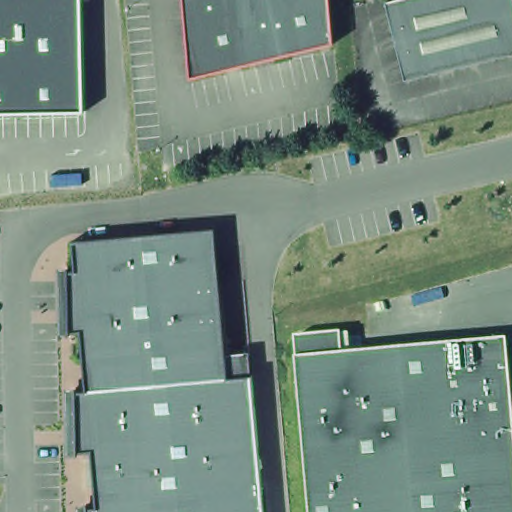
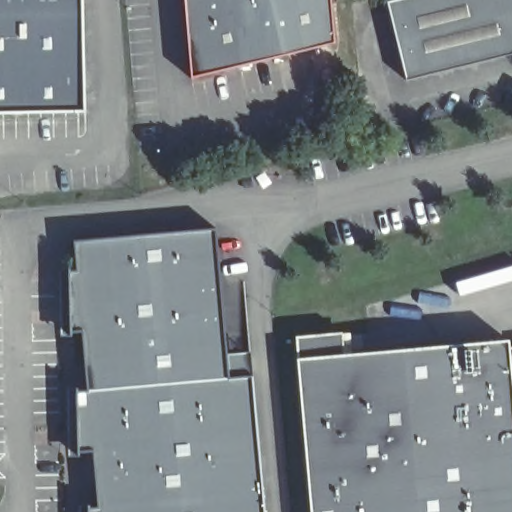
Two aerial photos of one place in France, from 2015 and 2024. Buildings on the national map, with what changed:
unchanged [(0,116),(0,0),(81,0),(84,114),(0,116)]
unchanged [(255,59),(190,75),(183,0),(329,0),(333,40),(255,59)]
unchanged [(414,0),(512,0),(512,59),(405,82),(386,6),(414,0)]
unchanged [(74,240),(221,231),(226,353),(256,352),(269,512),(84,512),(74,240)]
unchanged [(386,351),(507,340),(512,391),(512,512),(310,512),(296,359),(295,337),(340,333),(342,355),(386,351)]

